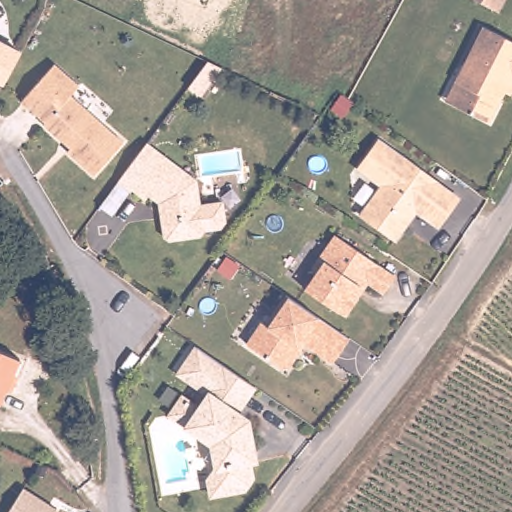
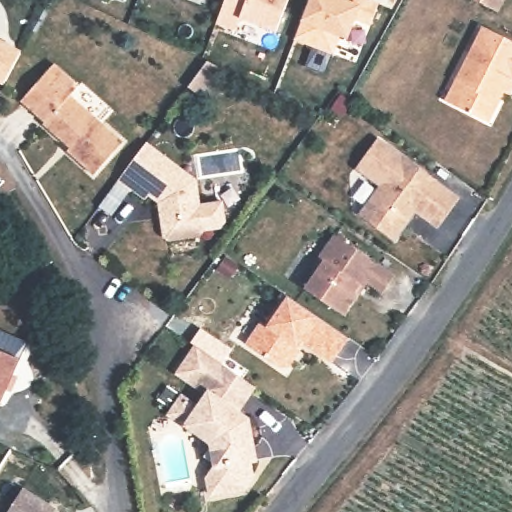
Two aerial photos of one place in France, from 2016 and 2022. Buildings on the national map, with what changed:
new [(239,20),(236,31),(216,24),(225,0),(289,0),(276,32),(239,20)]
new [(363,0),(375,4),(368,24),(352,18),(345,38),(337,35),(330,53),(292,39),(307,0),(363,0)]
unchanged [(500,0),(495,10),(492,8),(477,0),(500,0)]
unchanged [(482,26),(512,42),(512,45),(473,115),(453,105),(442,99),(453,80),(482,26)]
unchanged [(17,57),(9,71),(0,88),(0,43),(17,57)]
unchanged [(473,115),(512,45),(512,84),(506,93),(502,91),(485,121),(473,115)]
unchanged [(220,69),(199,97),(187,88),(206,62),(220,69)]
unchanged [(24,101),(55,63),(79,84),(72,94),(125,138),(97,172),(69,148),(74,143),(65,135),(63,138),(44,122),(45,119),(24,101)]
unchanged [(388,228),(362,210),(383,182),(362,166),(382,138),(427,173),(388,228)]
unchanged [(146,140),(195,176),(198,201),(221,197),(224,218),(219,225),(202,228),(197,234),(168,238),(161,232),(157,200),(146,192),(144,196),(131,187),(130,189),(109,217),(94,206),(117,179),(146,140)]
unchanged [(388,228),(427,173),(457,196),(438,223),(417,208),(396,235),(388,228)]
unchanged [(343,317),(336,313),(303,290),(313,276),(311,268),(334,236),(394,278),(381,295),(366,285),(356,300),(343,317)]
unchanged [(348,341),(331,365),(303,346),(287,368),(280,370),(245,345),(260,323),(267,328),(276,314),(274,312),(284,296),(285,296),(348,341)]
unchanged [(21,362),(0,407),(0,352),(21,362)]
unchanged [(254,390),(258,393),(240,418),(251,426),(256,453),(253,458),(250,458),(257,493),(214,501),(211,484),(219,473),(215,449),(218,444),(193,427),(190,432),(173,420),(185,403),(202,414),(212,400),(196,389),(182,379),(200,353),(215,363),(254,390)]
unchanged [(28,486),(40,494),(54,503),(61,508),(63,512),(11,512),(28,486)]

